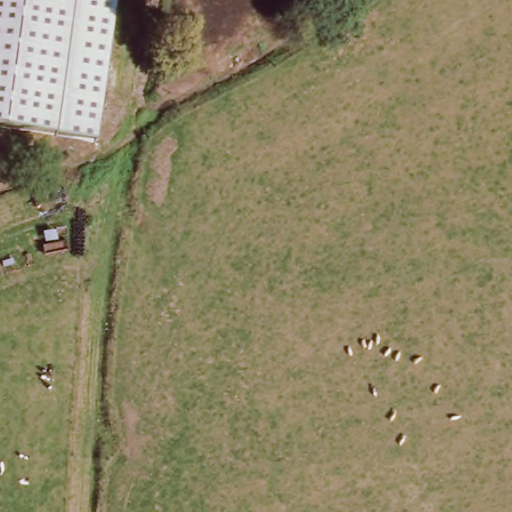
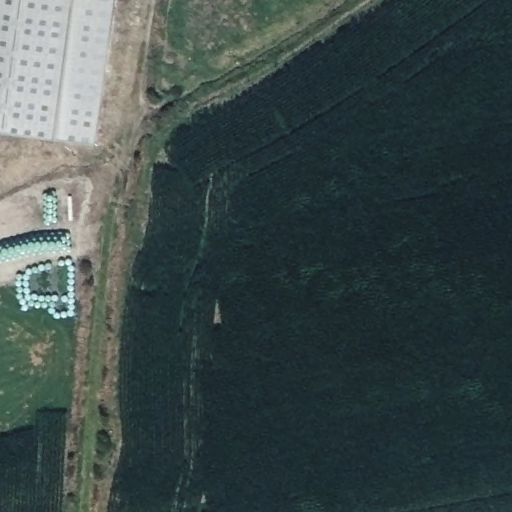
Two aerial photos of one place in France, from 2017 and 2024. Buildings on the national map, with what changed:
unchanged [(117,0),(98,142),(0,130),(0,0),(117,0)]

